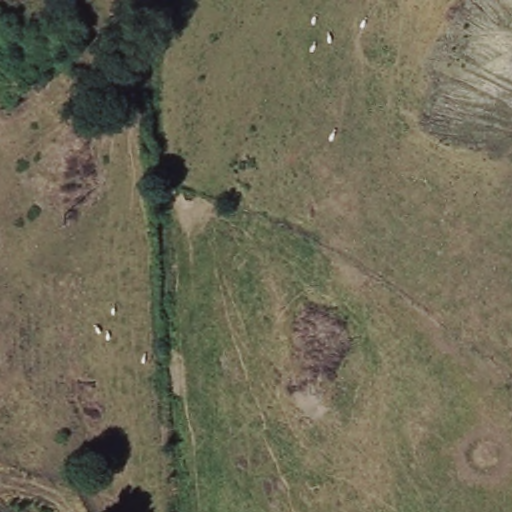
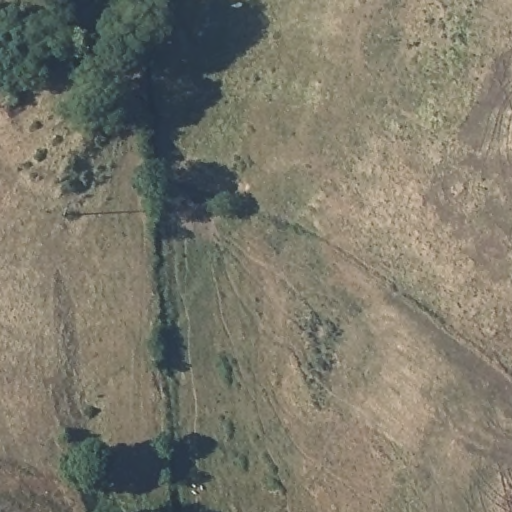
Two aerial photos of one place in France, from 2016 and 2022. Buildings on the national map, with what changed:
[]

